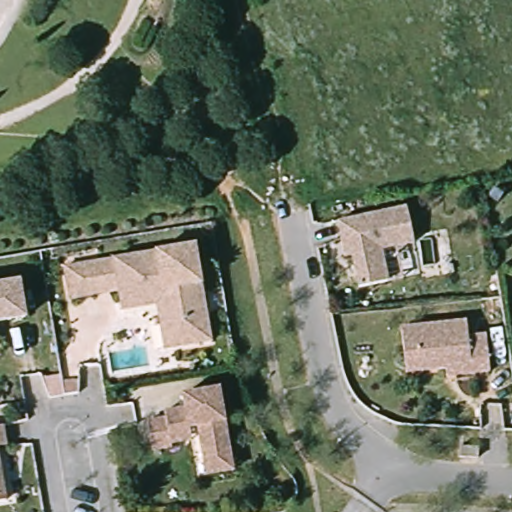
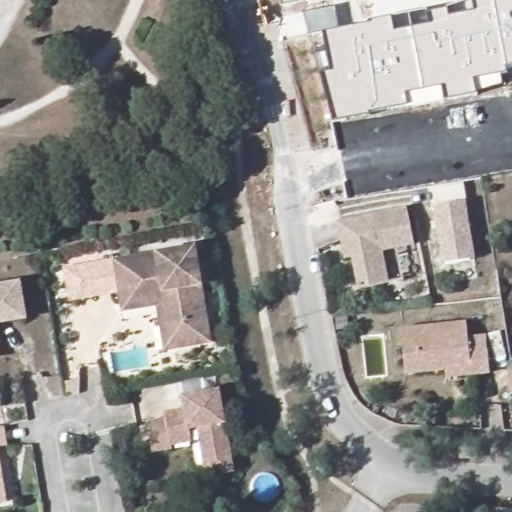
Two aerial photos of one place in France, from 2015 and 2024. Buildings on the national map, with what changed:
new [(507,73),(501,74),(502,84),(478,94),(446,100),(446,101),(411,109),(409,104),(334,121),(319,72),(332,69),(322,32),(310,35),(304,14),(337,7),(339,28),(372,22),(372,20),(427,11),(431,13),(448,7),(467,0),(512,0),(512,65),(505,66),(507,73)]
new [(477,259),(444,264),(434,206),(465,200),(477,259)]
unchanged [(340,244),(337,225),(406,209),(413,246),(381,253),(386,285),(356,290),(351,259),(343,260),(340,244)]
unchanged [(159,307),(126,313),(124,305),(122,293),(73,301),(69,269),(199,248),(214,344),(176,350),(167,352),(159,307)]
unchanged [(24,285),(29,319),(0,324),(0,289),(24,285)]
unchanged [(450,371),(421,373),(409,374),(407,352),(405,330),(470,324),(471,339),(489,338),(492,375),(474,376),(450,378),(450,371)]
unchanged [(0,358),(0,348),(1,351),(2,358),(0,358)]
unchanged [(173,445),(173,449),(153,451),(149,422),(168,420),(167,413),(188,410),(187,396),(222,392),(225,416),(232,461),(205,465),(199,429),(191,430),(193,443),(173,445)]
unchanged [(2,428),(5,448),(0,449),(0,429),(2,428)]
unchanged [(459,460),(459,450),(479,451),(479,461),(459,460)]
unchanged [(1,485),(4,504),(0,504),(0,483),(1,485)]

